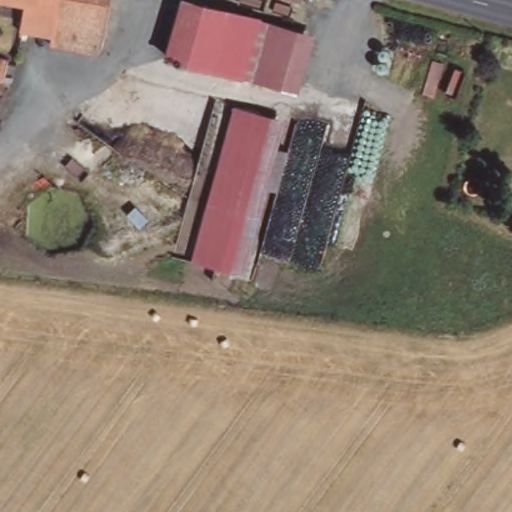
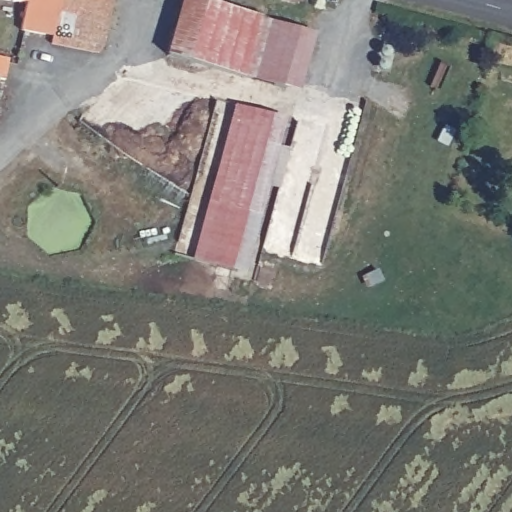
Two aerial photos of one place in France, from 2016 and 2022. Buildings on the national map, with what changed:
unchanged [(47,49),(50,39),(35,35),(18,31),(19,29),(0,24),(0,7),(0,0),(111,0),(95,60),(47,49)]
unchanged [(181,0),(192,0),(260,21),(242,82),(166,61),(181,0)]
unchanged [(313,35),(298,96),(242,82),(260,21),(313,35)]
unchanged [(230,109),(268,118),(234,273),(195,265),(219,160),(230,109)]
unchanged [(280,120),(245,276),(234,273),(268,118),(280,120)]

